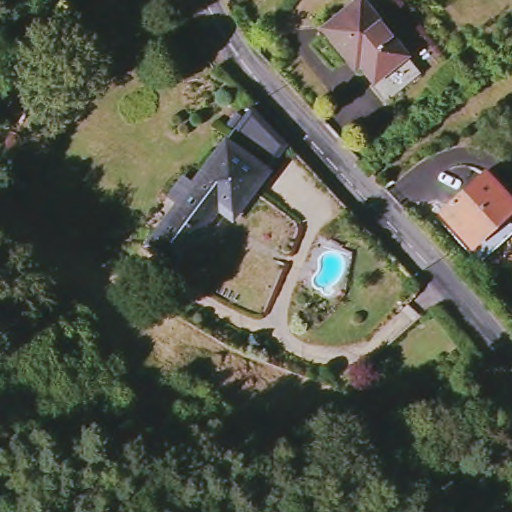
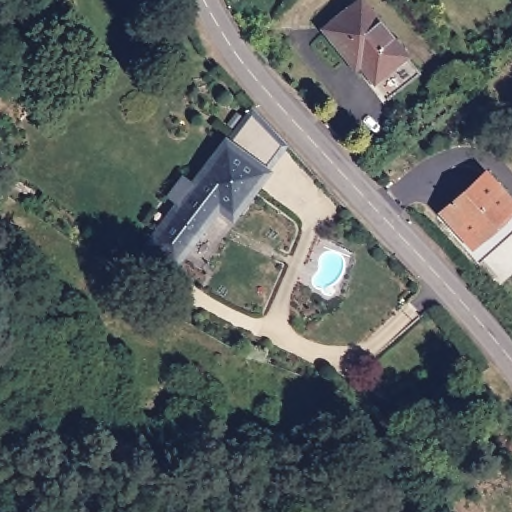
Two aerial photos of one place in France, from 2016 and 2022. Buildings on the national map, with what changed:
unchanged [(354,69),(336,48),(321,29),(324,27),(321,24),(328,19),(329,21),(356,0),(359,0),(406,55),(374,81),(359,65),(354,69)]
unchanged [(146,244),(177,202),(167,194),(181,175),(191,182),(223,138),(266,169),(232,216),(218,207),(175,265),(146,244)]
unchanged [(460,234),(456,237),(444,224),(448,220),(442,213),(486,172),(512,202),(512,210),(472,247),(460,234)]

